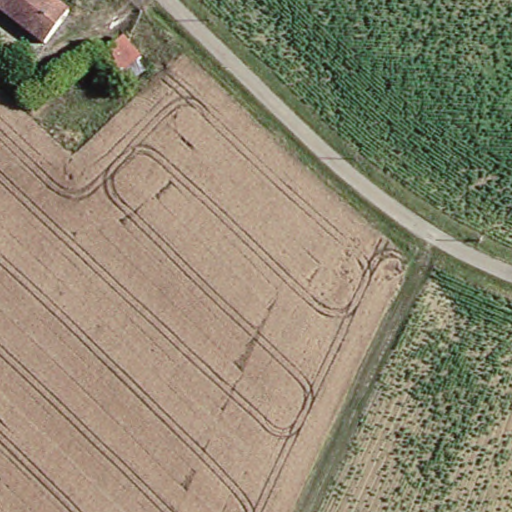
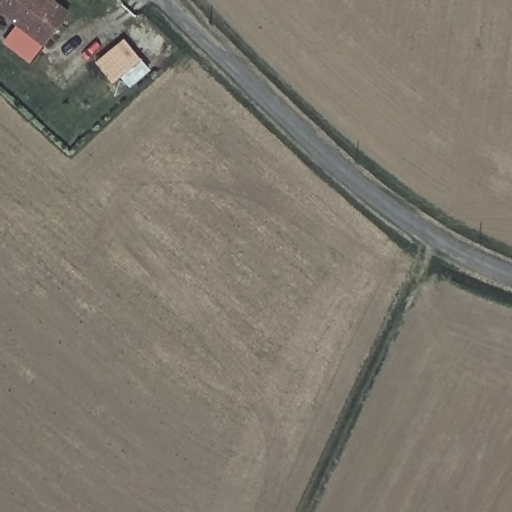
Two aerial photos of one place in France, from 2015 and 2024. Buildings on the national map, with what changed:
unchanged [(42,42),(0,11),(0,0),(49,0),(67,12),(42,42)]
unchanged [(151,57),(131,79),(111,65),(128,42),(151,57)]

